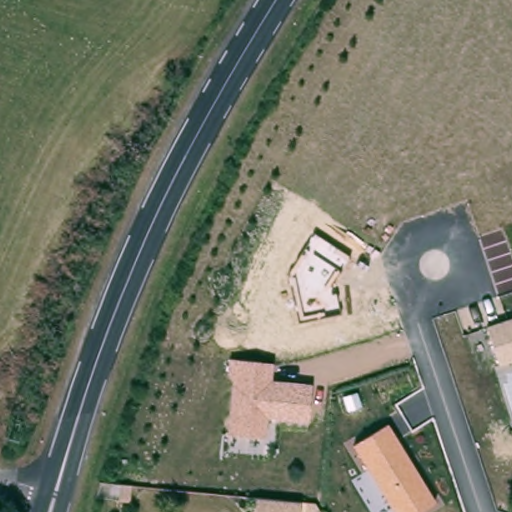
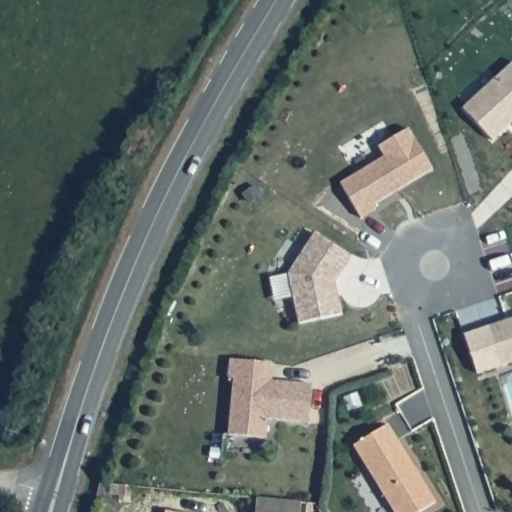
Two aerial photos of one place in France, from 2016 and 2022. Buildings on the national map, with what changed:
new [(492,139),(462,107),(512,60),(512,61),(512,120),(492,139)]
new [(384,156),(377,145),(407,127),(431,168),(373,204),(375,209),(360,217),(339,183),(384,156)]
unchanged [(291,272),(316,235),(350,257),(333,284),(340,313),(300,321),(291,272)]
unchanged [(487,325),(512,317),(512,361),(499,365),(487,325)]
unchanged [(233,380),(227,380),(229,358),(274,364),(272,381),(313,385),(309,422),(267,419),(265,438),(228,435),(233,380)]
unchanged [(353,445),(390,423),(435,502),(420,512),(395,512),(353,445)]
unchanged [(305,498),(303,512),(257,512),(258,495),(305,498)]

